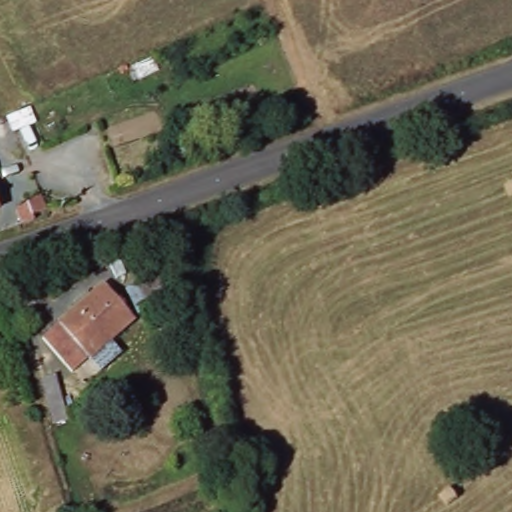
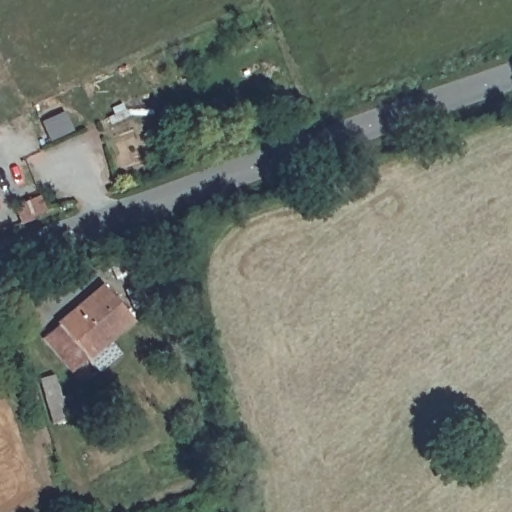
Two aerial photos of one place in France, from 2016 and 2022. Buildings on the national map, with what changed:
unchanged [(144,266),(161,307),(155,310),(157,315),(151,317),(131,272),(144,266)]
unchanged [(128,315),(105,335),(113,345),(116,348),(95,367),(91,363),(83,354),(67,367),(38,333),(99,280),(128,315)]

